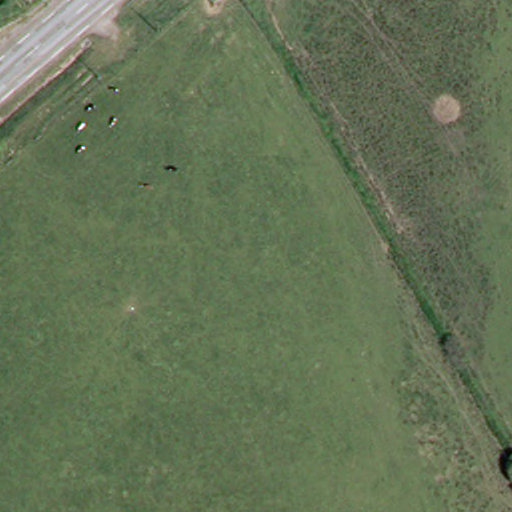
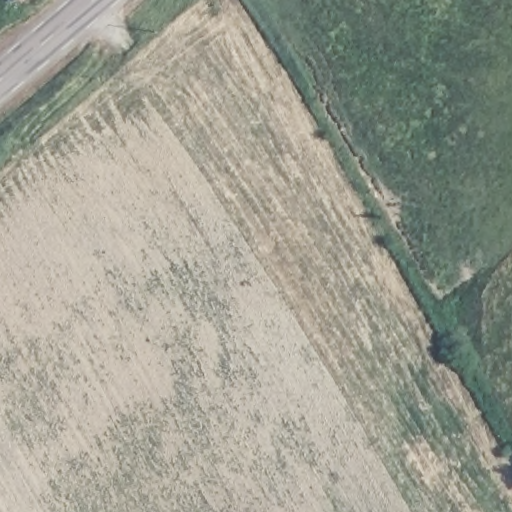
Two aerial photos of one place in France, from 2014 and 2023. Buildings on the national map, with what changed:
unchanged [(36,0),(23,11),(15,0),(36,0)]

